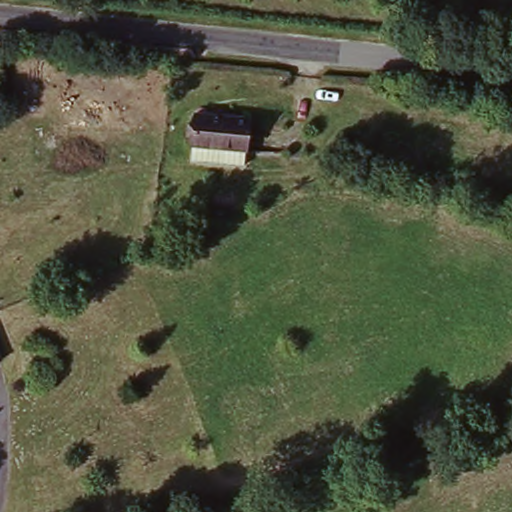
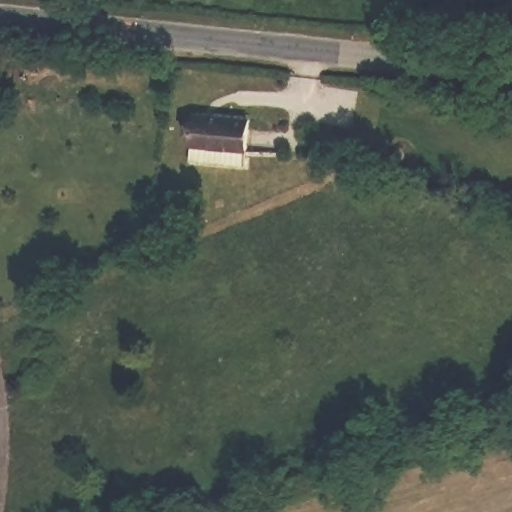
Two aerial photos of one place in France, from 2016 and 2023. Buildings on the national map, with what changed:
unchanged [(254,155),(195,152),(196,122),(256,124),(255,136),(254,155)]
unchanged [(252,172),(194,171),(195,152),(254,155),(252,172)]
unchanged [(0,362),(0,358),(1,362),(0,362)]

